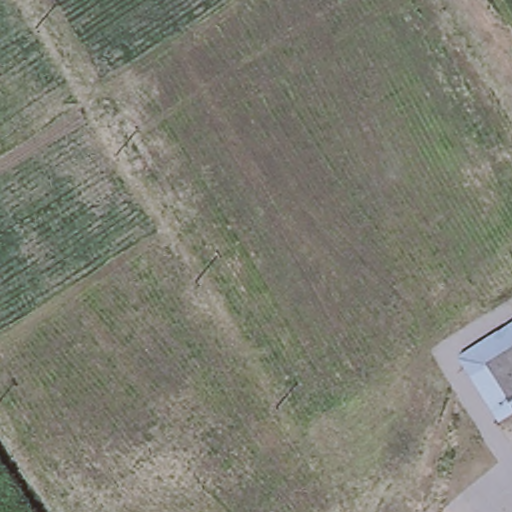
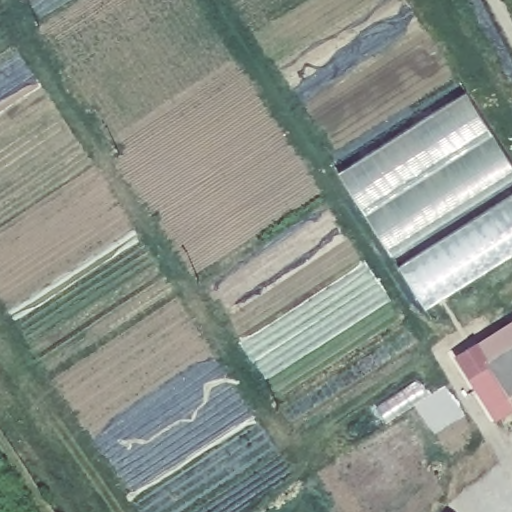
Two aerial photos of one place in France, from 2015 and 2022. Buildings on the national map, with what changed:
new [(340,171),(467,92),(512,166),(512,178),(392,253),(340,171)]
new [(400,267),(512,198),(512,254),(425,307),(400,267)]
unchanged [(495,422),(452,348),(512,313),(512,411),(495,422)]

